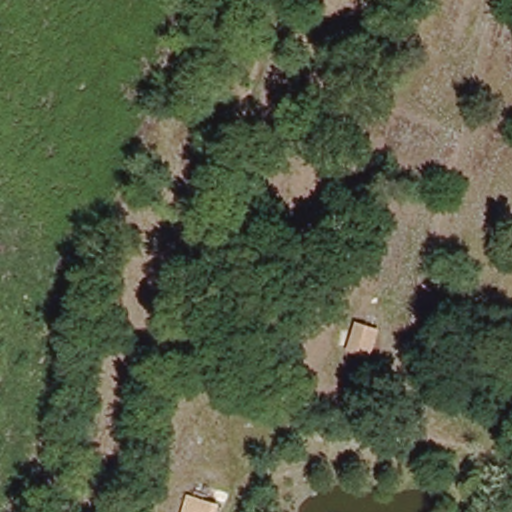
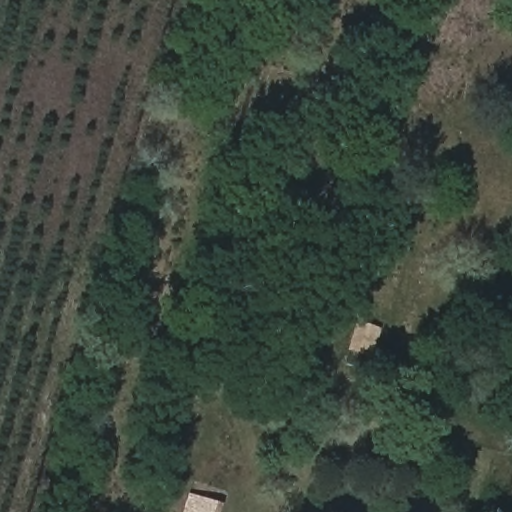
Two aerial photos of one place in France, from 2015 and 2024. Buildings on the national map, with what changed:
unchanged [(384,326),(373,361),(343,353),(355,319),(384,326)]
unchanged [(224,502),(221,512),(183,512),(188,494),(224,502)]

